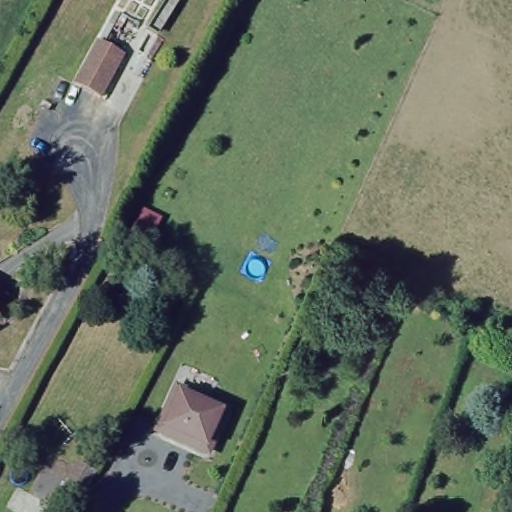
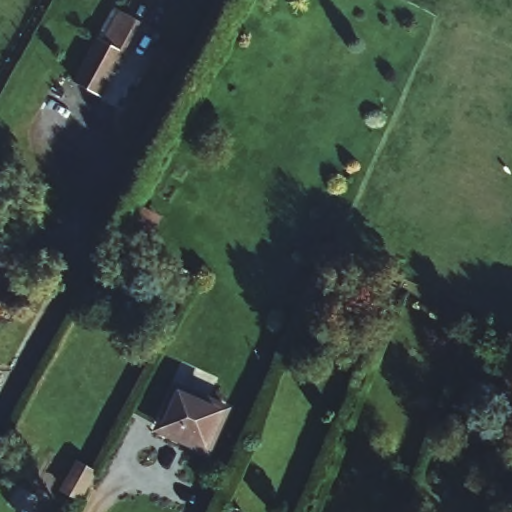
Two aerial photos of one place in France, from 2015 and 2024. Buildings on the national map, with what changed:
unchanged [(140,22),(103,98),(74,82),(116,9),(140,22)]
unchanged [(205,448),(165,431),(159,428),(166,412),(176,390),(179,385),(211,398),(230,407),(213,445),(211,451),(205,448)]

